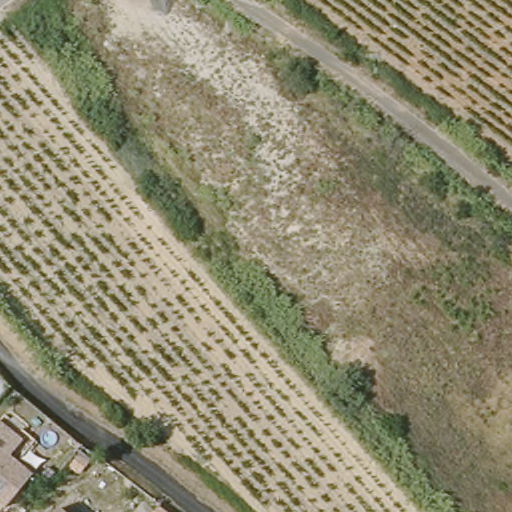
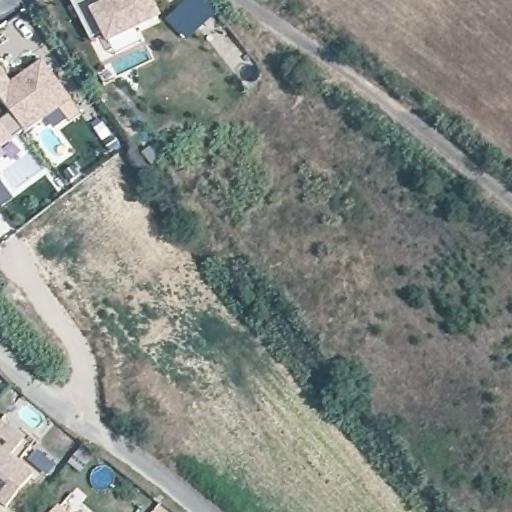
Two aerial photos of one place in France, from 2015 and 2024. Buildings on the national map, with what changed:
new [(82,0),(111,0),(112,1),(114,0),(151,0),(161,20),(108,48),(102,36),(91,42),(72,5),(82,0)]
new [(10,81),(41,59),(80,111),(67,121),(58,110),(13,139),(0,123),(0,122),(9,115),(0,103),(0,68),(10,81)]
new [(13,139),(0,149),(0,123),(13,139)]
unchanged [(36,475),(9,506),(0,498),(0,444),(36,475)]
unchanged [(56,512),(64,503),(73,512),(56,512)]

